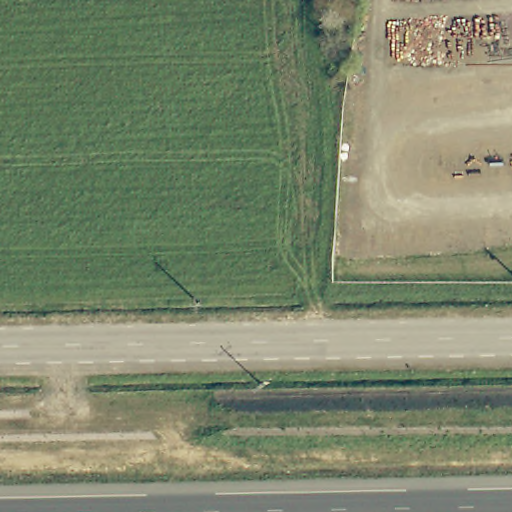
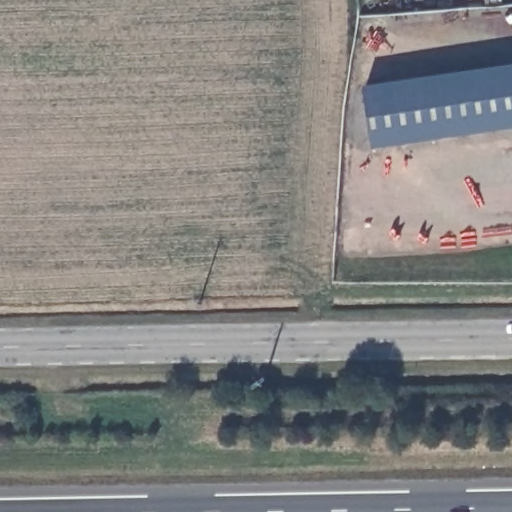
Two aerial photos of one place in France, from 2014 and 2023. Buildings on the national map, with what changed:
new [(364,87),(512,66),(512,130),(374,150),(364,87)]

